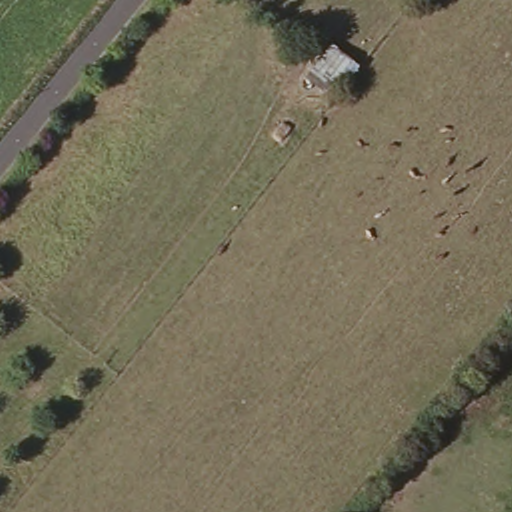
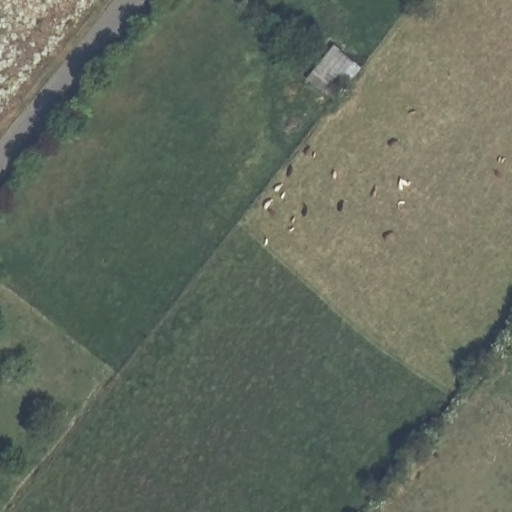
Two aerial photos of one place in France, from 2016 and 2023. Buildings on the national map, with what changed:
unchanged [(337,42),(357,57),(331,90),(311,75),(337,42)]

